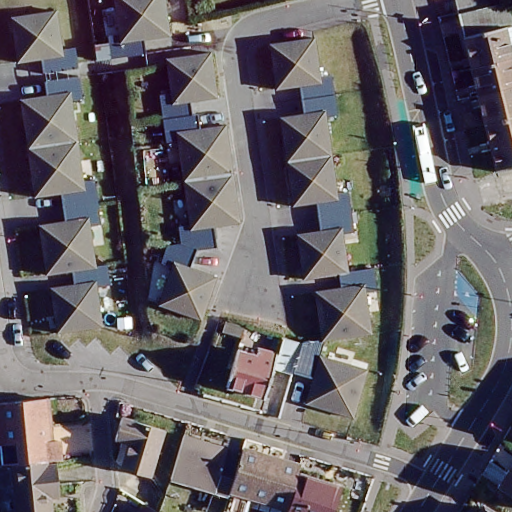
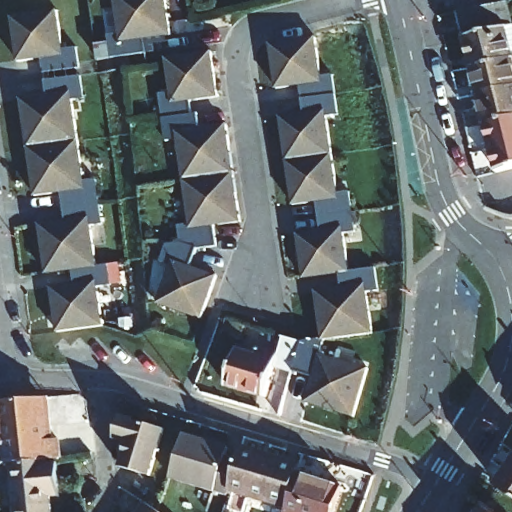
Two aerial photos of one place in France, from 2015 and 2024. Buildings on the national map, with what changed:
unchanged [(166,25),(143,28),(147,51),(113,55),(109,33),(121,32),(116,0),(162,0),(166,25)]
unchanged [(512,53),(509,54),(468,64),(455,10),(458,9),(456,0),(489,0),(489,1),(493,0),(505,0),(509,20),(512,20),(512,53)]
unchanged [(58,7),(63,48),(75,46),(75,51),(77,65),(42,69),(40,55),(19,58),(13,12),(58,7)]
unchanged [(313,35),(319,76),(329,74),(330,79),(332,93),(301,97),(299,83),(274,86),(268,41),(313,35)]
unchanged [(173,261),(179,242),(178,222),(189,221),(180,137),(169,138),(166,115),(163,91),(174,89),(169,54),(214,48),(221,93),(194,97),(196,111),(201,110),(203,124),(228,120),(239,219),(218,222),(219,243),(211,243),(204,271),(228,278),(216,322),(171,309),(184,265),(173,261)]
unchanged [(509,54),(512,66),(512,81),(474,90),(468,64),(509,54)]
unchanged [(21,94),(47,91),(45,77),(80,72),(82,87),(83,95),(72,96),(77,137),(27,143),(21,94)]
unchanged [(512,81),(512,112),(482,120),(474,90),(512,81)]
unchanged [(332,93),(334,111),(324,113),(329,154),(284,160),(278,114),(303,111),(301,97),(332,93)]
unchanged [(512,162),(493,166),(482,120),(512,112),(512,162)]
unchanged [(77,137),(82,178),(93,176),(94,185),(96,199),(61,203),(59,189),(33,192),(27,143),(77,137)]
unchanged [(329,154),(334,194),(346,193),(348,211),(314,216),(313,202),(289,205),(284,160),(329,154)]
unchanged [(43,270),(37,220),(63,217),(61,203),(96,199),(98,213),(98,221),(88,222),(93,264),(69,267),(43,270)]
unchanged [(348,211),(350,230),(339,231),(344,272),(339,273),(299,278),(293,233),(316,230),(314,216),(348,211)]
unchanged [(69,267),(93,264),(104,263),(106,281),(93,283),(98,323),(53,329),(47,283),(70,280),(69,267)]
unchanged [(315,290),(341,286),(339,273),(344,272),(374,268),(378,291),(366,292),(371,333),(321,339),(315,290)]
unchanged [(365,371),(351,419),(303,405),(311,378),(291,372),(274,367),(281,339),(299,344),(321,339),(317,357),(365,371)]
unchanged [(253,357),(256,349),(274,354),(262,398),(224,387),(234,352),(253,357)]
unchanged [(41,392),(47,433),(52,433),(55,451),(43,453),(13,458),(5,459),(0,460),(0,398),(32,394),(41,392)]
unchanged [(163,428),(148,477),(119,468),(127,441),(113,436),(119,416),(163,428)]
unchanged [(221,443),(219,452),(232,456),(223,484),(221,491),(163,475),(176,430),(221,443)]
unchanged [(235,445),(258,452),(258,454),(294,465),(284,502),(223,484),(232,456),(235,445)]
unchanged [(43,453),(43,456),(53,456),(55,471),(58,488),(49,490),(51,512),(12,512),(5,459),(13,458),(43,453)]
unchanged [(512,453),(512,494),(494,483),(512,453)]
unchanged [(297,469),(314,474),(313,479),(324,483),(326,478),(339,482),(330,512),(284,512),(284,509),(297,469)]
unchanged [(126,512),(134,499),(149,508),(156,512),(126,512)]
unchanged [(494,512),(476,512),(481,503),(494,512)]

